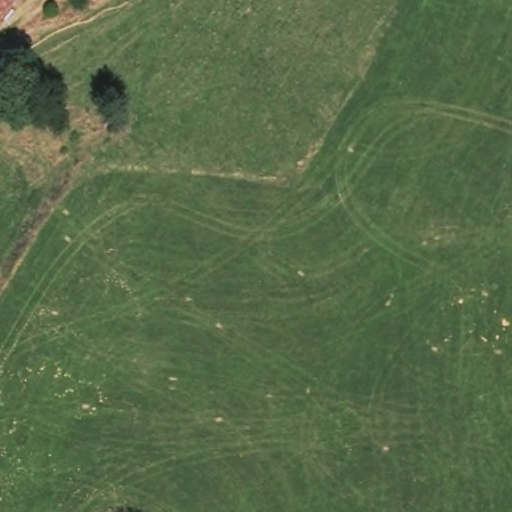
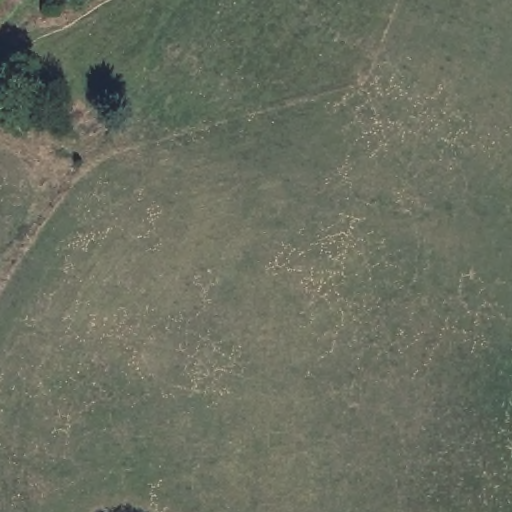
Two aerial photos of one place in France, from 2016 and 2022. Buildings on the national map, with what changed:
unchanged [(10,0),(19,0),(15,5),(10,0)]

